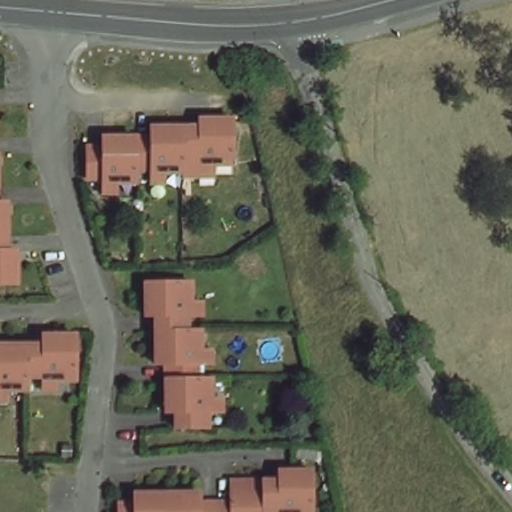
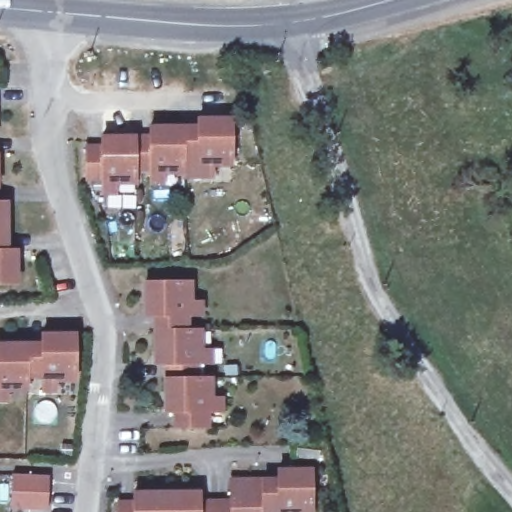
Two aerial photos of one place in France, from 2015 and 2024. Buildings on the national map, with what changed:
unchanged [(102,182),(102,178),(86,178),(86,147),(102,147),(102,141),(102,137),(113,137),(151,137),(151,131),(151,127),(161,127),(199,127),(199,123),(199,119),(210,119),(233,119),(233,164),(213,164),(213,177),(200,177),(183,177),(183,173),(164,173),(164,183),(151,183),(151,173),(151,169),(136,169),(136,182),(115,182),(115,193),(102,193),(102,182)]
unchanged [(6,201),(6,212),(7,250),(12,250),(17,250),(17,261),(17,283),(0,283),(0,201),(1,201),(6,201)]
unchanged [(162,364),(156,364),(152,364),(152,353),(151,316),(146,316),(141,316),(141,305),(141,283),(186,282),(187,302),(198,301),(198,315),(187,315),(183,315),(183,330),(197,330),(198,350),(208,350),(208,363),(198,363),(193,363),(194,378),(208,378),(208,398),(218,398),(218,411),(208,412),(204,412),(204,428),(173,428),(173,412),(168,413),(163,413),(163,402),(162,364)]
unchanged [(43,339),(43,333),(43,329),(54,329),(76,329),(76,374),(56,374),(57,385),(43,385),(43,374),(43,370),(28,371),(28,385),(8,385),(8,395),(0,395),(0,339),(5,339),(43,339)]
new [(10,475),(49,476),(48,512),(9,510),(10,475)]
unchanged [(134,507),(134,502),(134,497),(145,497),(189,497),(200,497),(200,501),(200,507),(231,506),(231,485),(254,485),(264,485),(279,485),(279,480),(279,475),(290,475),(313,475),(313,512),(118,512),(118,508),(134,507)]

